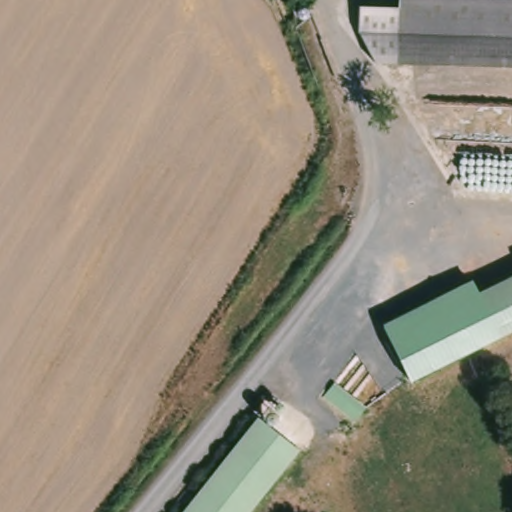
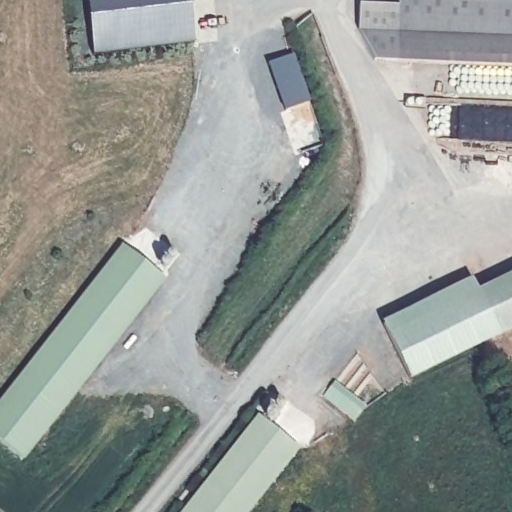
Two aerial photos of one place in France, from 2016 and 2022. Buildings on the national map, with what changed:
new [(88,0),(190,0),(194,42),(93,52),(88,0)]
unchanged [(359,29),(358,5),(396,6),(396,0),(512,0),(512,66),(373,61),(359,29)]
new [(23,457),(0,439),(0,400),(122,245),(164,277),(23,457)]
unchanged [(479,292),(512,276),(512,332),(498,339),(479,292)]
unchanged [(498,339),(410,380),(382,322),(471,278),(479,292),(498,339)]
unchanged [(365,406),(355,421),(324,397),(335,381),(365,406)]
unchanged [(299,449),(250,512),(183,512),(258,416),(299,449)]

